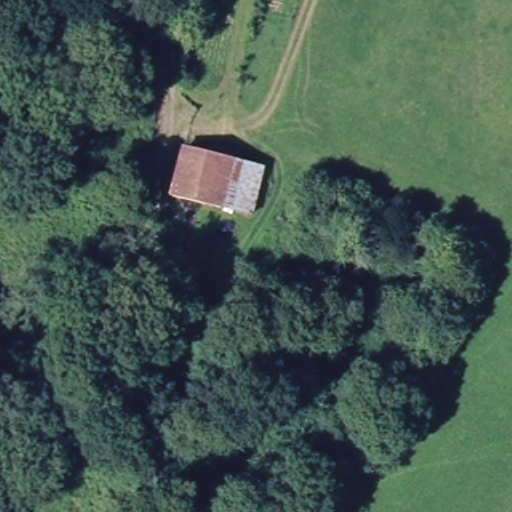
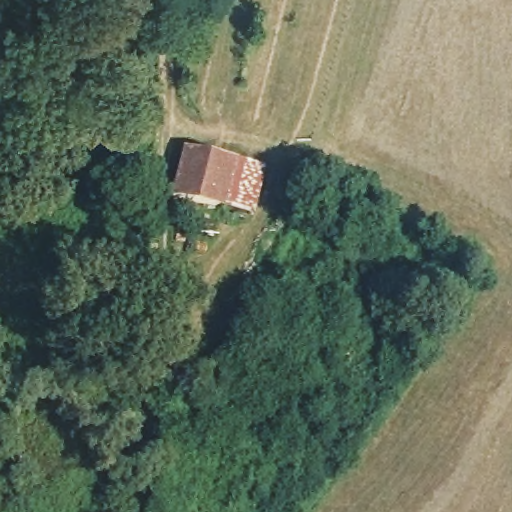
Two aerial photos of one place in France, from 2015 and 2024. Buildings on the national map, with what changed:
unchanged [(266,166),(257,218),(175,200),(186,151),(266,166)]

